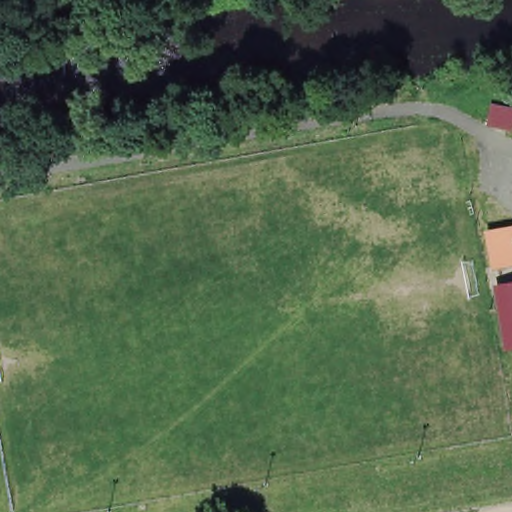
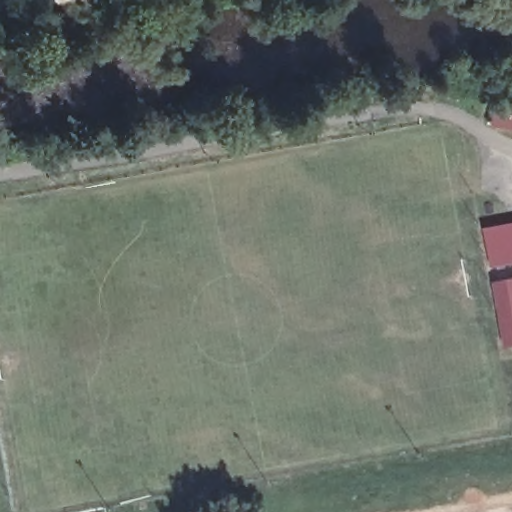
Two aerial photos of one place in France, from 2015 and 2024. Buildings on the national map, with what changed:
unchanged [(512,111),(512,128),(491,124),(494,108),(512,111)]
unchanged [(512,231),(512,265),(500,267),(494,235),(512,231)]
unchanged [(512,348),(507,349),(494,285),(512,282),(512,348)]

